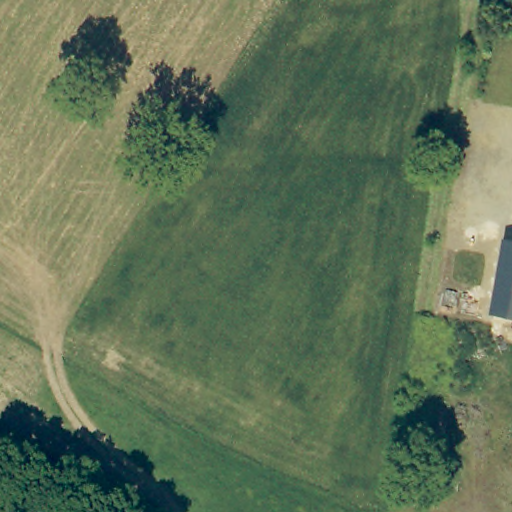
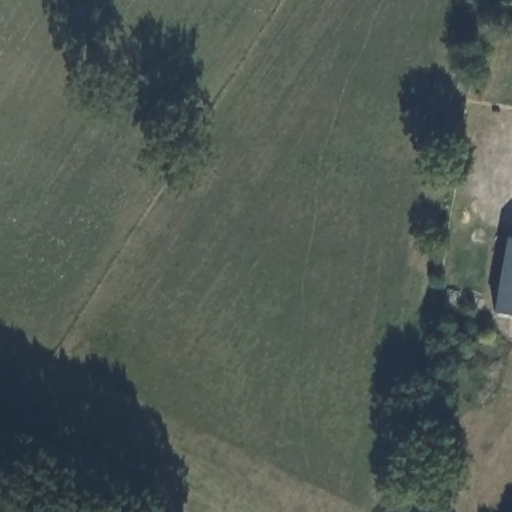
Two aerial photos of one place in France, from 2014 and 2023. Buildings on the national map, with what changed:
unchanged [(512,316),(484,311),(496,238),(512,240),(512,316)]

